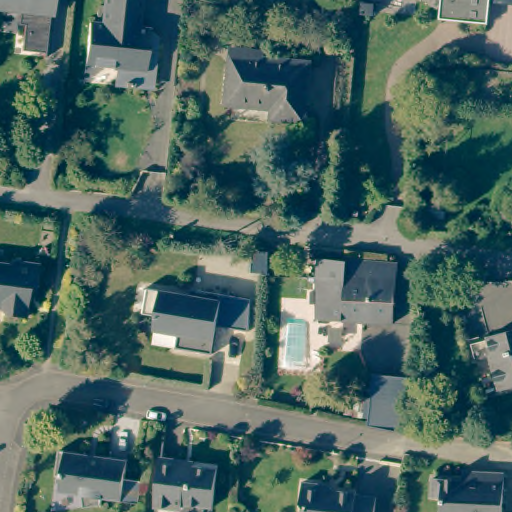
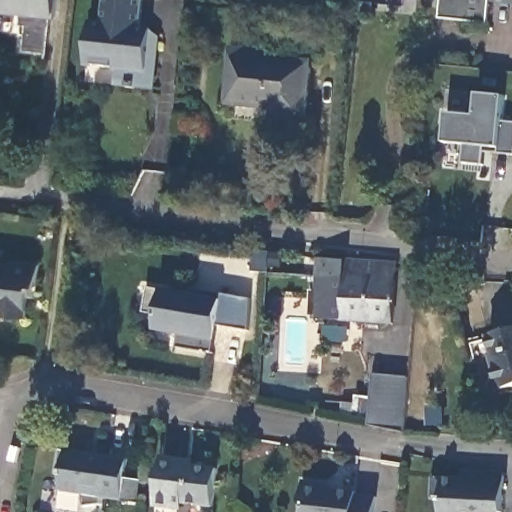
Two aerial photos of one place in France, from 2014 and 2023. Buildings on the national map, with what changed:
unchanged [(56,14),(52,14),(49,52),(25,49),(27,24),(24,24),(25,6),(0,3),(0,0),(57,0),(56,14)]
unchanged [(82,57),(86,21),(99,22),(101,0),(140,0),(137,26),(149,27),(148,31),(152,34),(155,37),(150,87),(142,87),(119,85),(112,80),(114,67),(100,65),(82,62),(82,57)]
unchanged [(443,0),(491,0),(490,24),(460,20),(440,17),(443,1),(443,0)]
unchanged [(305,124),(272,120),(273,110),(226,105),(232,48),(268,52),(267,57),(311,62),(305,124)]
new [(500,149),(486,147),(482,165),(465,164),(468,146),(445,142),(448,115),(475,117),(477,96),(503,97),(501,123),(512,124),(512,155),(498,154),(500,149)]
unchanged [(445,209),(443,220),(417,217),(419,205),(445,209)]
unchanged [(346,274),(346,256),(396,258),(392,320),(317,314),(317,272),(346,274)]
unchanged [(29,293),(25,315),(5,313),(0,308),(0,261),(12,262),(12,257),(40,262),(36,283),(35,294),(29,293)]
unchanged [(213,351),(176,344),(177,331),(164,328),(155,327),(156,316),(155,313),(144,311),(147,286),(190,292),(190,287),(250,296),(249,328),(217,322),(216,328),(213,351)]
unchanged [(512,385),(497,388),(488,354),(490,353),(486,334),(512,328),(512,385)]
unchanged [(405,431),(365,424),(375,372),(413,376),(405,431)]
unchanged [(125,475),(143,477),(141,487),(140,501),(122,498),(104,495),(102,502),(85,505),(83,492),(61,490),(62,473),(56,472),(60,447),(86,451),(87,458),(101,460),(103,453),(123,456),(128,457),(125,475)]
unchanged [(218,471),(214,508),(176,503),(176,510),(156,507),(160,459),(180,461),(180,467),(218,471)]
unchanged [(442,512),(443,497),(432,497),(434,477),(463,479),(463,470),(483,471),(505,472),(503,512),(500,512),(442,512)]
unchanged [(304,512),(304,510),(301,503),(305,482),(328,485),(332,490),(357,492),(357,496),(377,497),(376,512),(304,512)]

